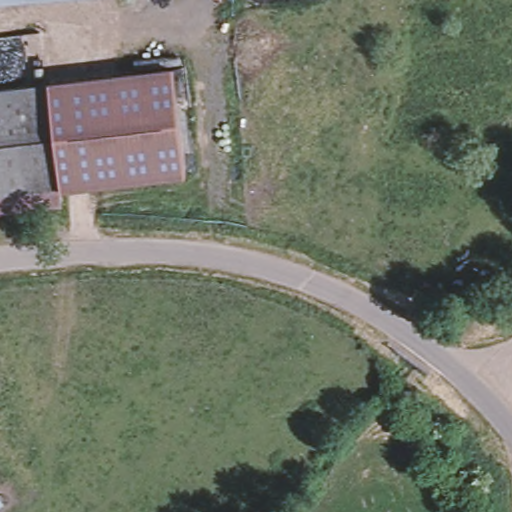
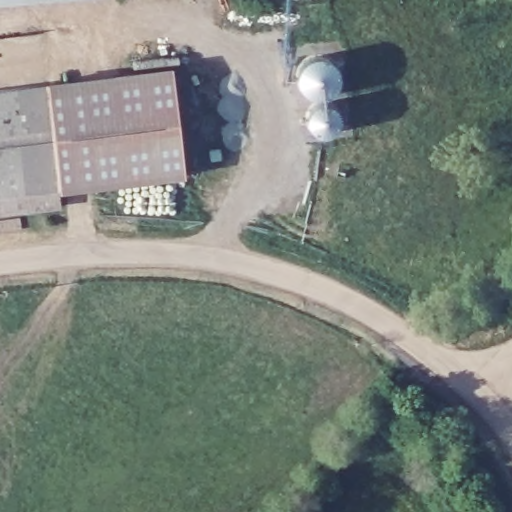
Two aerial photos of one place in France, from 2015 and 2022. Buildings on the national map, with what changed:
unchanged [(0,6),(0,0),(59,0),(0,6)]
new [(320,55),(328,57),(336,61),(341,70),(342,80),(342,118),(339,126),(335,132),(327,135),(319,134),(312,129),(310,124),(302,89),(299,76),(303,65),(310,59),(320,55)]
unchanged [(188,174),(60,191),(50,81),(172,65),(188,174)]
unchanged [(60,191),(0,200),(0,90),(50,81),(60,191)]

